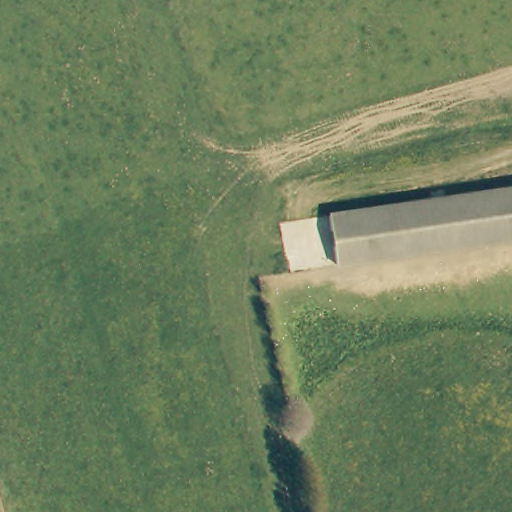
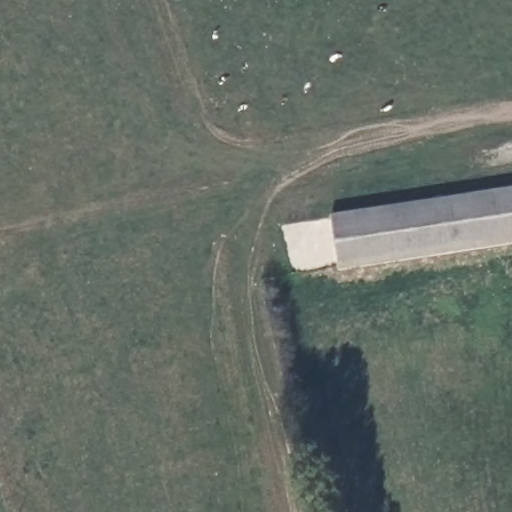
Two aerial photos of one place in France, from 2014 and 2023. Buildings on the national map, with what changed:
unchanged [(512,244),(337,270),(331,213),(512,186),(512,244)]

